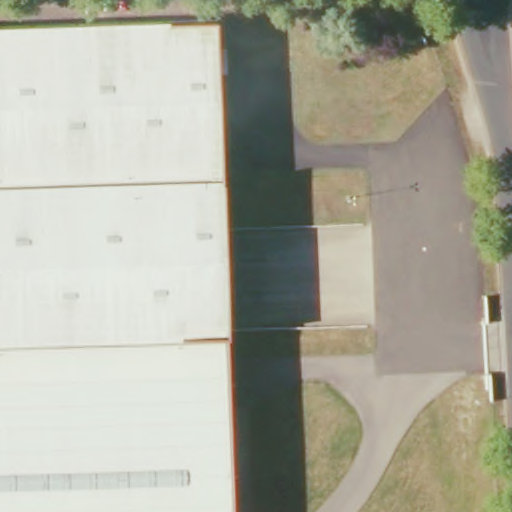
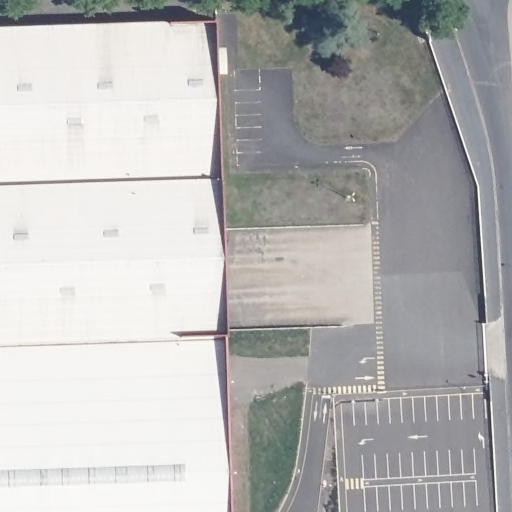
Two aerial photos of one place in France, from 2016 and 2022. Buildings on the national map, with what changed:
unchanged [(0,512),(0,25),(214,18),(228,512),(0,512)]

